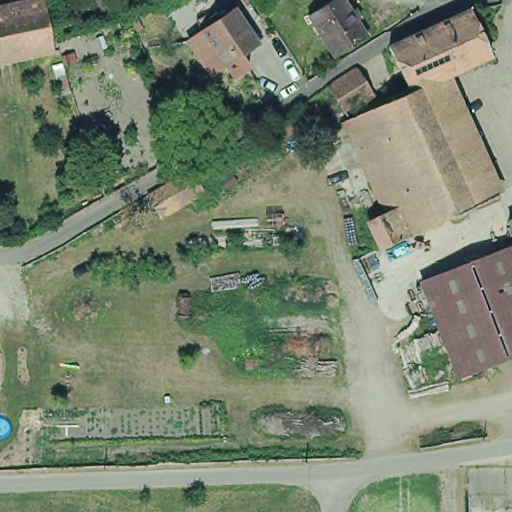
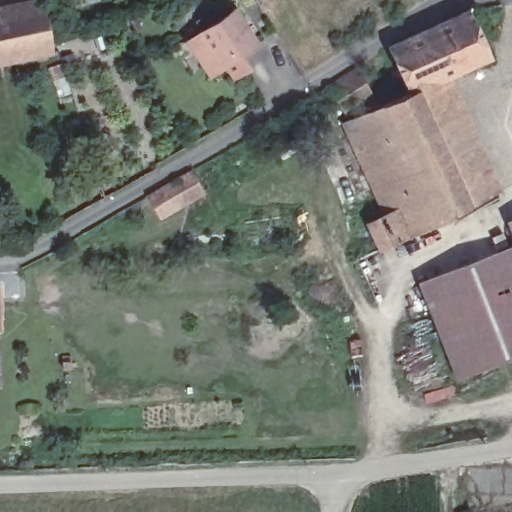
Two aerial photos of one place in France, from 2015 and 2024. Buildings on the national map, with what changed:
demolished [(330,0),(343,0),(366,37),(333,57),(307,14),(330,0)]
unchanged [(0,15),(35,8),(46,57),(0,66),(0,15)]
unchanged [(389,46),(465,10),(466,12),(474,9),(482,29),(477,33),(488,57),(436,81),(432,82),(410,92),(409,90),(389,46)]
unchanged [(236,10),(257,43),(224,66),(215,71),(211,73),(189,40),(199,34),(202,32),(236,10)]
unchanged [(349,119),(344,110),(336,114),(332,108),(339,103),(327,85),(330,83),(356,67),(372,92),(380,105),(409,90),(410,92),(432,82),(440,99),(485,200),(422,228),(397,240),(378,248),(366,222),(385,213),(344,121),(349,119)]
unchanged [(156,194),(200,169),(211,188),(167,213),(156,194)]
unchanged [(507,222),(512,220),(512,236),(507,222)]
unchanged [(457,377),(430,308),(420,283),(512,246),(512,355),(457,377)]

